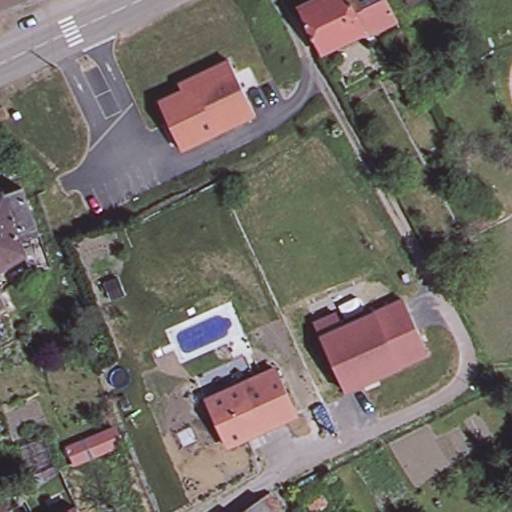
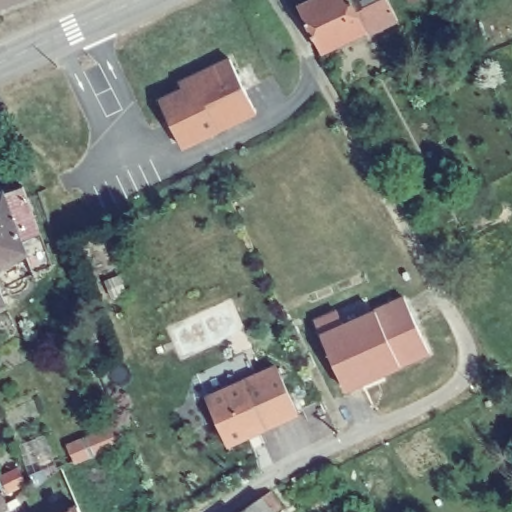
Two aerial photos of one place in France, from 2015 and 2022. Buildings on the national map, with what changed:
unchanged [(36,0),(40,0),(36,1),(0,15),(0,0),(36,0)]
unchanged [(368,29),(367,26),(321,48),(299,0),(300,0),(391,0),(398,14),(368,29)]
unchanged [(259,113),(185,147),(163,100),(186,89),(183,82),(233,59),(259,113)]
unchanged [(5,104),(9,114),(0,117),(0,106),(5,104)]
unchanged [(1,192),(5,190),(6,191),(25,184),(43,235),(54,266),(35,273),(33,274),(26,250),(0,266),(0,193),(1,192)]
unchanged [(0,301),(0,285),(6,298),(0,301)]
unchanged [(343,325),(360,317),(404,297),(409,308),(429,351),(345,390),(314,322),(336,311),(343,325)]
unchanged [(8,328),(0,332),(0,307),(8,328)]
unchanged [(239,383),(274,366),(295,411),(259,427),(226,443),(205,399),(239,383)]
unchanged [(118,427),(123,442),(78,458),(73,442),(118,427)]
unchanged [(276,485),(287,501),(279,507),(282,511),(281,512),(240,512),(276,485)]
unchanged [(1,494),(9,507),(0,512),(0,495),(1,494)]
unchanged [(76,503),(80,512),(61,512),(76,503)]

